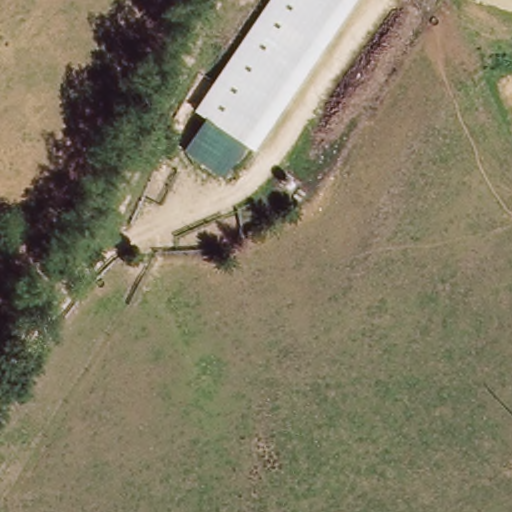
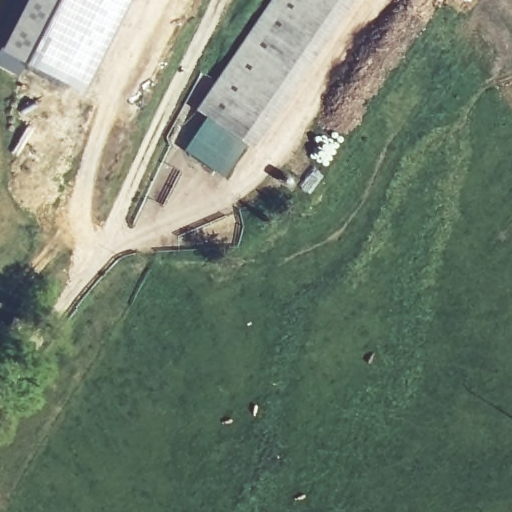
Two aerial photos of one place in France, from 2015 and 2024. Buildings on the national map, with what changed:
new [(23,0),(101,0),(58,83),(0,54),(0,46),(23,0)]
new [(101,0),(123,0),(76,92),(58,83),(101,0)]
new [(196,110),(273,0),(279,0),(205,118),(196,110)]
unchanged [(205,118),(279,0),(344,0),(251,147),(211,121),(205,118)]
unchanged [(256,149),(251,147),(344,0),(356,0),(256,149)]
unchanged [(211,121),(251,147),(256,149),(236,180),(192,152),(211,121)]

